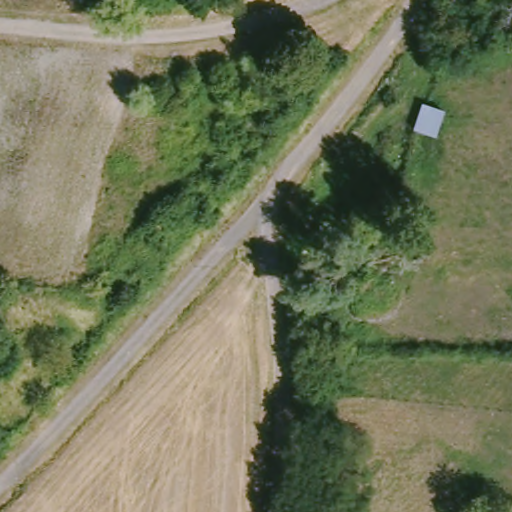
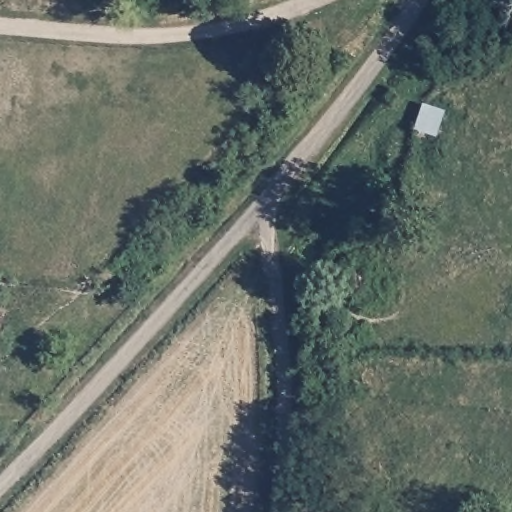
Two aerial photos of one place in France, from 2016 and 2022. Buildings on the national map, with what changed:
unchanged [(425,105),(445,112),(435,137),(415,130),(425,105)]

